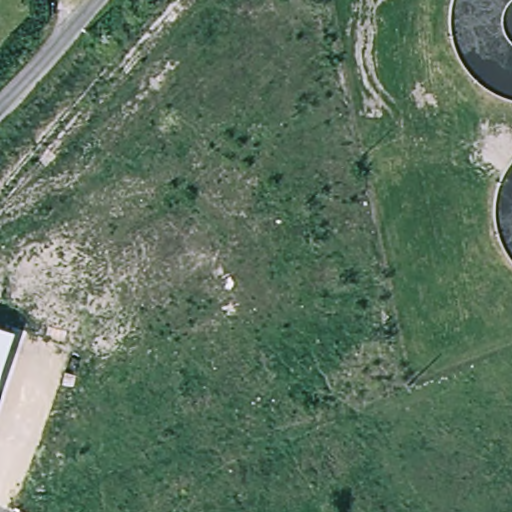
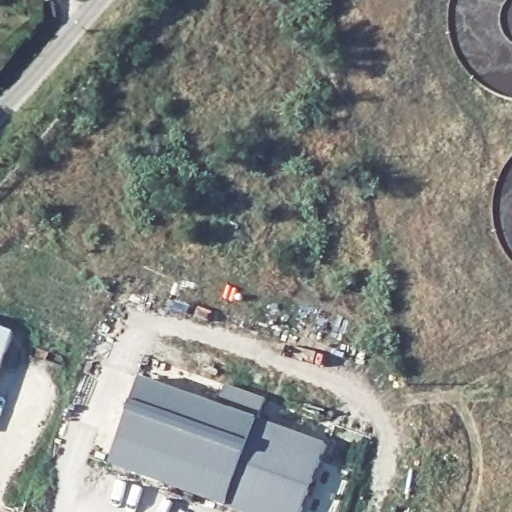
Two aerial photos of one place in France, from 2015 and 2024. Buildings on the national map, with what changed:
unchanged [(0,371),(0,326),(14,330),(0,371)]
new [(226,384),(268,399),(259,419),(328,445),(302,512),(244,512),(228,506),(111,461),(120,434),(141,377),(218,406),(226,384)]

